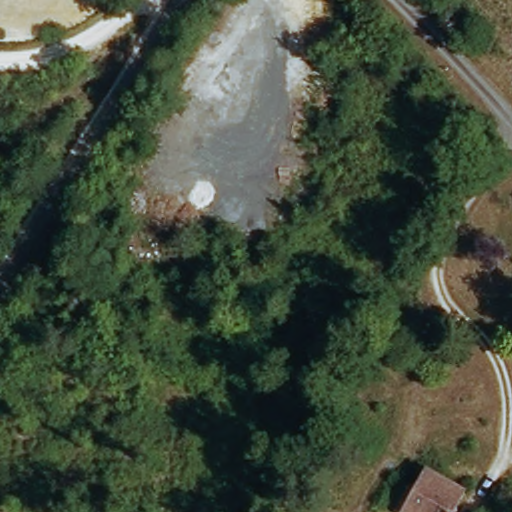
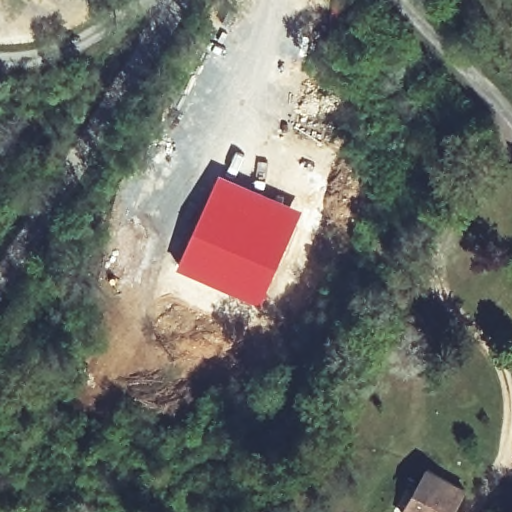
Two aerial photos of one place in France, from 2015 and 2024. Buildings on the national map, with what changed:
new [(219,172),(302,211),(260,303),(177,264),(219,172)]
unchanged [(460,494),(450,512),(401,512),(424,473),(460,494)]

